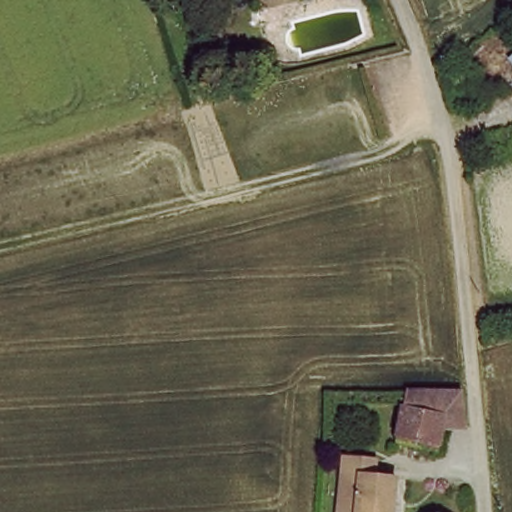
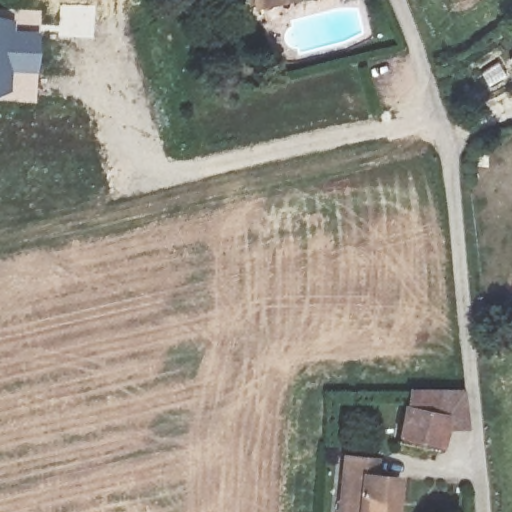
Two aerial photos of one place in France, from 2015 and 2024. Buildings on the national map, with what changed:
unchanged [(301,0),(258,13),(255,0),(301,0)]
new [(15,31),(38,33),(38,74),(13,71),(10,91),(0,91),(0,20),(15,20),(15,31)]
unchanged [(507,58),(512,53),(512,64),(507,58)]
unchanged [(412,395),(468,395),(471,432),(445,431),(449,411),(406,407),(412,395)]
unchanged [(449,411),(445,431),(442,451),(399,447),(406,407),(449,411)]
unchanged [(376,473),(395,475),(392,512),(338,512),(344,455),(376,458),(376,473)]

